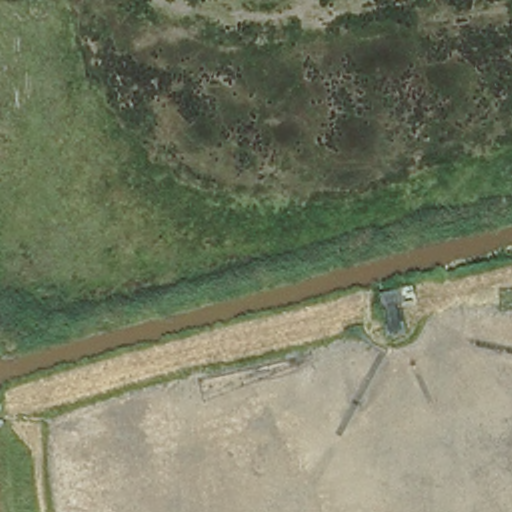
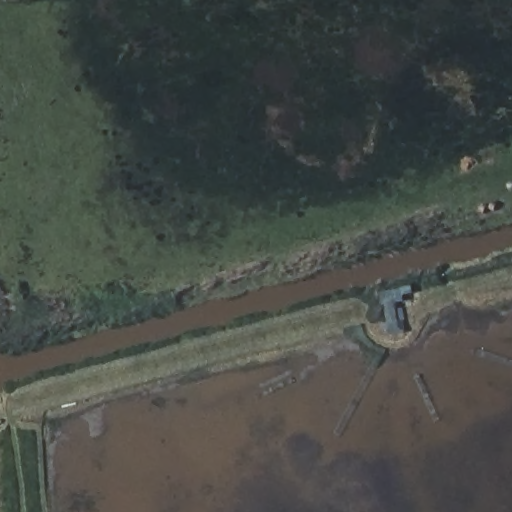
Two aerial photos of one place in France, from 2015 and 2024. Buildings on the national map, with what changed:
unchanged [(385,337),(378,297),(398,292),(405,330),(385,337)]

